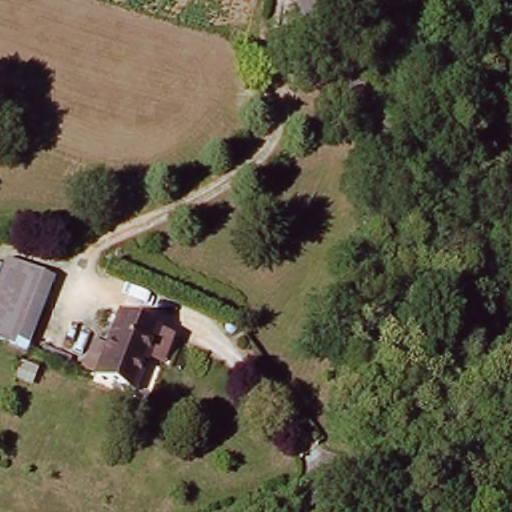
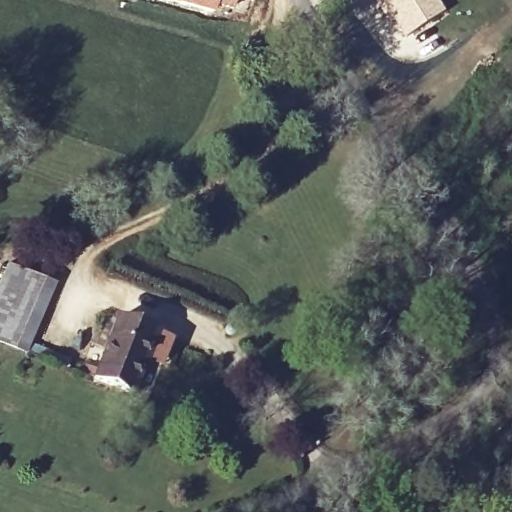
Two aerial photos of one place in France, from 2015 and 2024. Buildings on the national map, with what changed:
new [(234,7),(218,4),(217,9),(179,0),(236,0),(234,7)]
new [(426,23),(406,36),(382,0),(410,0),(426,23)]
new [(444,10),(426,23),(410,0),(438,0),(444,10)]
unchanged [(0,344),(0,276),(4,265),(53,284),(26,356),(0,344)]
unchanged [(92,379),(116,317),(126,322),(163,336),(138,398),(102,383),(92,379)]

